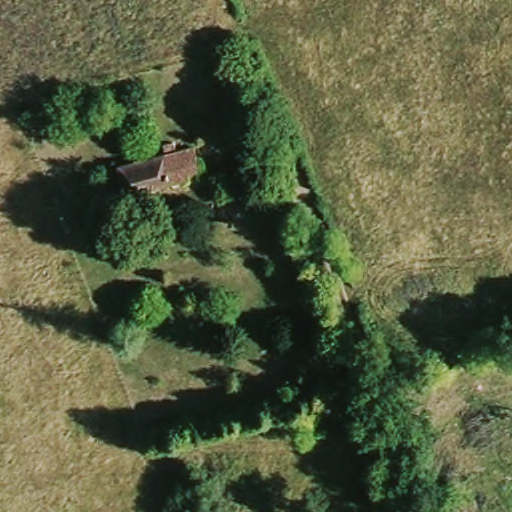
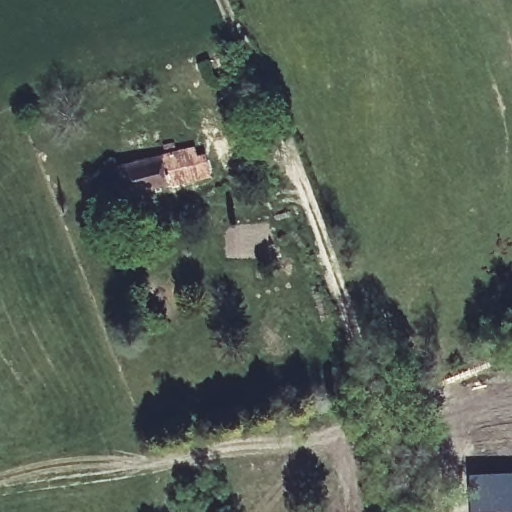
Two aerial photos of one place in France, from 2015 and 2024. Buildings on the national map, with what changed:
unchanged [(191,149),(201,188),(130,207),(118,168),(160,157),(156,142),(168,139),(172,154),(191,149)]
new [(468,512),(466,472),(512,470),(512,512),(468,512)]

